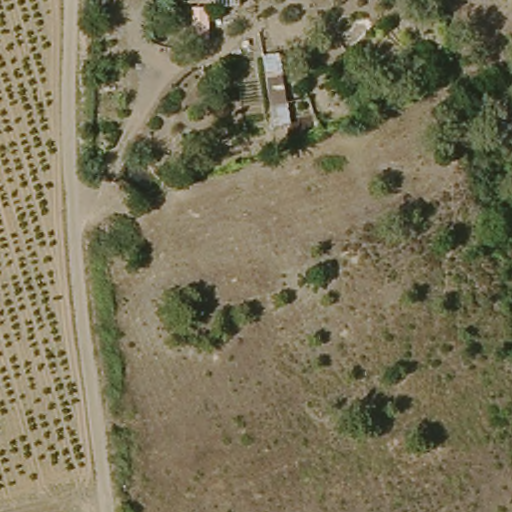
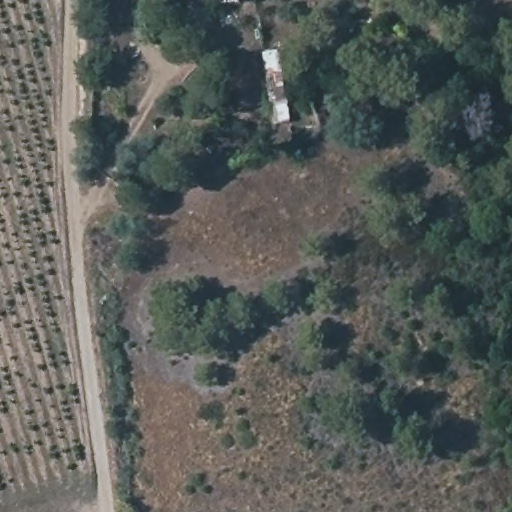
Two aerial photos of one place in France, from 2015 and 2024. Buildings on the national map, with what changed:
unchanged [(239,1),(187,4),(185,0),(239,0),(239,1)]

